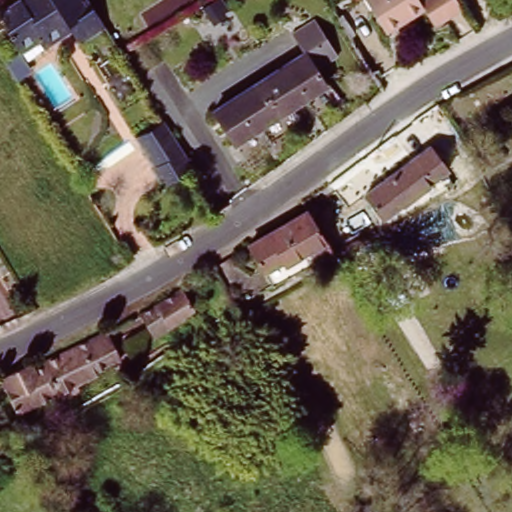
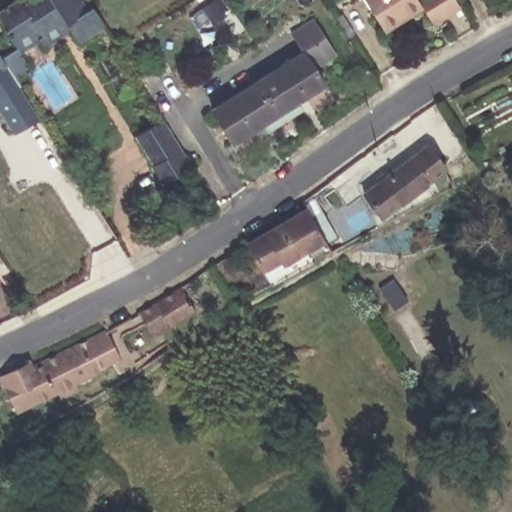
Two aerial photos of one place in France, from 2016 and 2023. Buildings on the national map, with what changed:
unchanged [(73,45),(65,33),(38,49),(34,43),(14,56),(1,37),(3,35),(0,30),(0,11),(11,4),(10,1),(12,0),(81,0),(94,20),(99,29),(73,45)]
unchanged [(456,16),(438,27),(429,33),(417,14),(405,21),(404,19),(385,30),(367,0),(420,0),(446,0),(456,16)]
unchanged [(225,6),(231,16),(219,24),(213,14),(225,6)]
new [(32,71),(18,80),(21,87),(17,89),(38,119),(14,134),(0,112),(0,55),(1,57),(20,52),(32,71)]
unchanged [(259,83),(305,55),(326,89),(281,118),(259,83)]
unchanged [(233,148),(211,113),(259,83),(281,118),(233,148)]
unchanged [(156,191),(145,174),(151,170),(132,141),(158,125),(188,172),(156,191)]
unchanged [(413,159),(431,147),(448,173),(380,218),(363,192),(344,205),(328,182),(394,134),(413,159)]
unchanged [(293,218),(311,249),(317,259),(261,292),(252,276),(236,249),(293,218)]
unchanged [(173,329),(171,325),(148,339),(135,317),(183,290),(196,314),(173,329)]
unchanged [(101,332),(117,359),(93,371),(95,376),(81,383),(85,390),(60,402),(57,395),(14,417),(0,390),(0,370),(25,359),(31,369),(101,332)]

